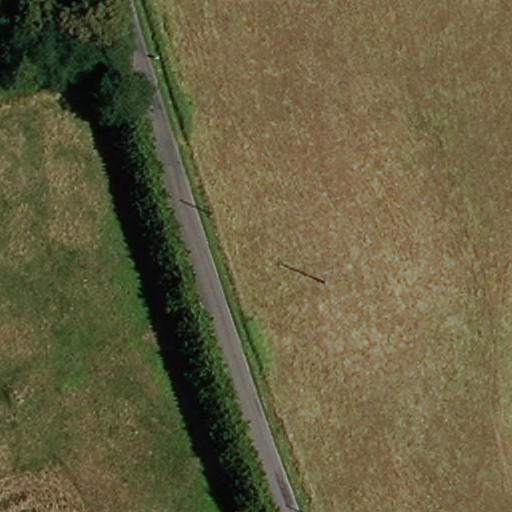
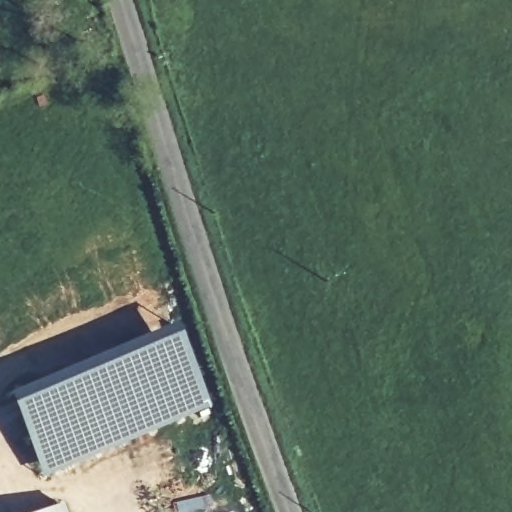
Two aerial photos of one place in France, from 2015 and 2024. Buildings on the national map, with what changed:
new [(176,332),(210,408),(40,480),(8,404),(176,332)]
new [(61,512),(35,512),(58,504),(61,512)]

